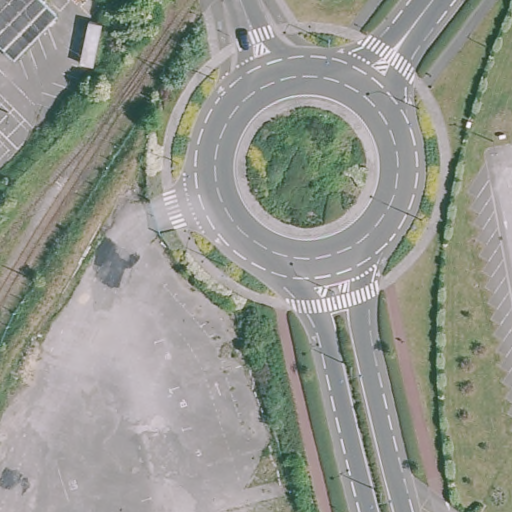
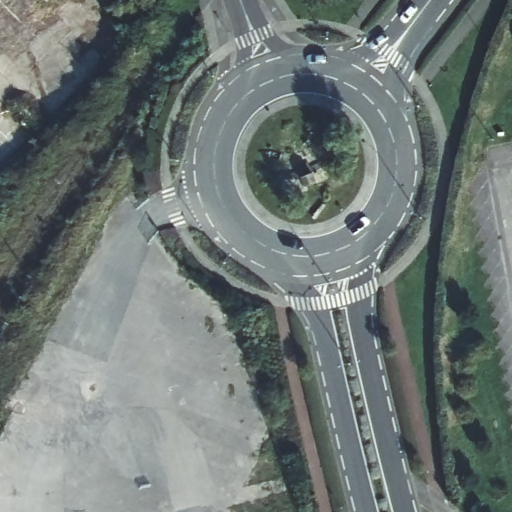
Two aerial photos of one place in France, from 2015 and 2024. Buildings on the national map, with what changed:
demolished [(58,18),(14,62),(0,49),(0,0),(40,0),(54,14),(58,18)]
demolished [(72,0),(78,0),(75,2),(72,0)]

